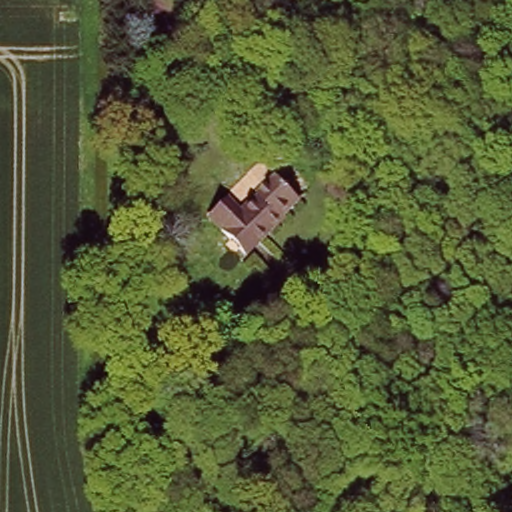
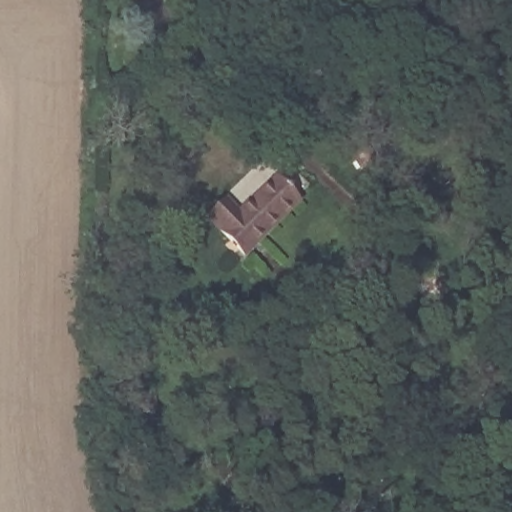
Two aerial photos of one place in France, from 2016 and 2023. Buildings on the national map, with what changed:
unchanged [(220,224),(238,204),(225,191),(257,156),(305,203),(253,257),(220,224)]

